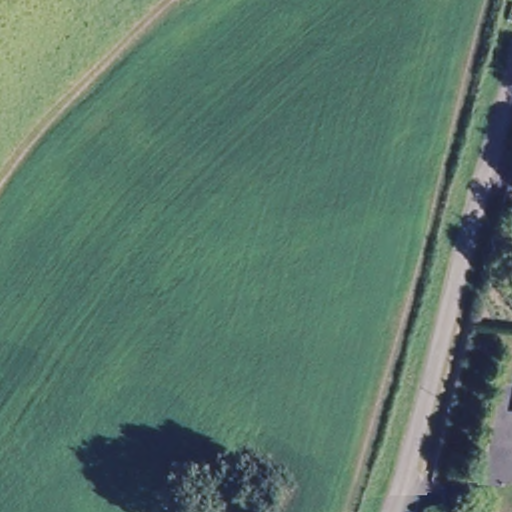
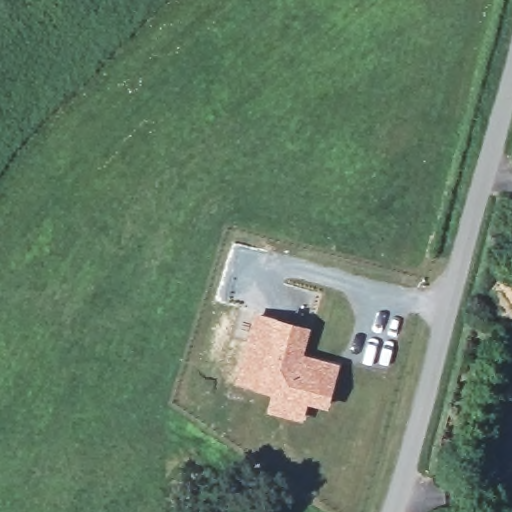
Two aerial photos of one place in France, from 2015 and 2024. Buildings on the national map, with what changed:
new [(274,317),(311,327),(304,354),(339,364),(328,408),(307,403),(303,421),(268,412),(272,394),(256,389),(236,382),(255,312),(274,317)]

